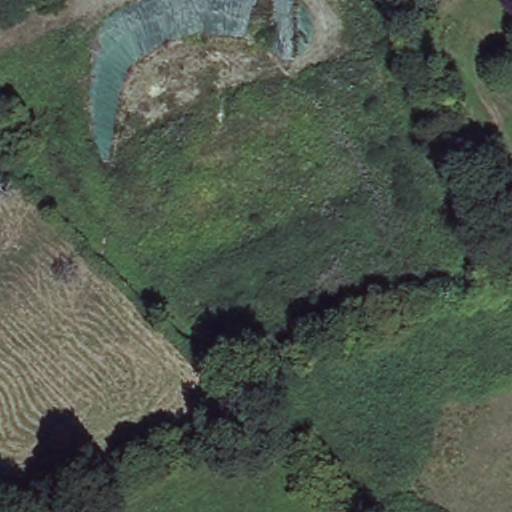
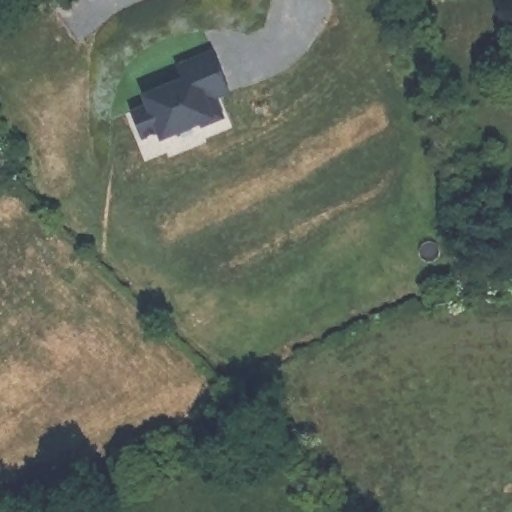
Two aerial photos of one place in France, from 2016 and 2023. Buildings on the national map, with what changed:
new [(226,95),(213,100),(221,120),(198,130),(194,121),(176,128),(177,132),(160,140),(157,134),(140,142),(130,117),(147,111),(142,100),(179,85),(174,70),(207,55),(226,95)]

